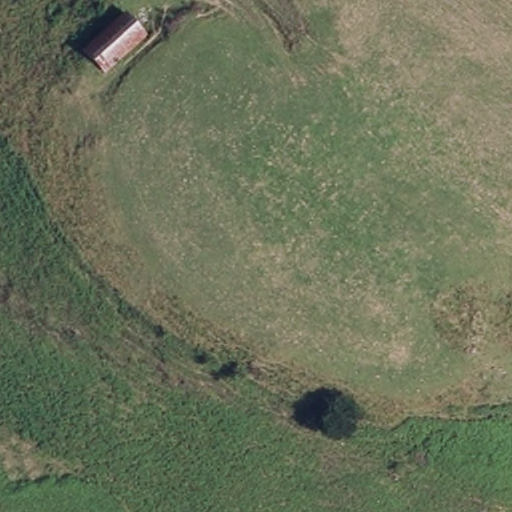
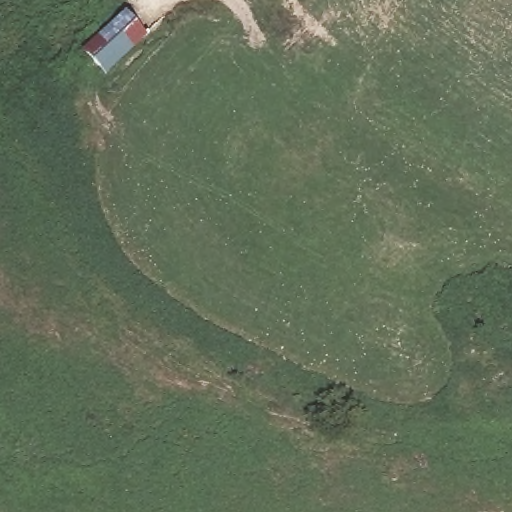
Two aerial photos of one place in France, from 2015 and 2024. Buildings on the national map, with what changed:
unchanged [(98,73),(77,47),(131,6),(149,29),(98,73)]

